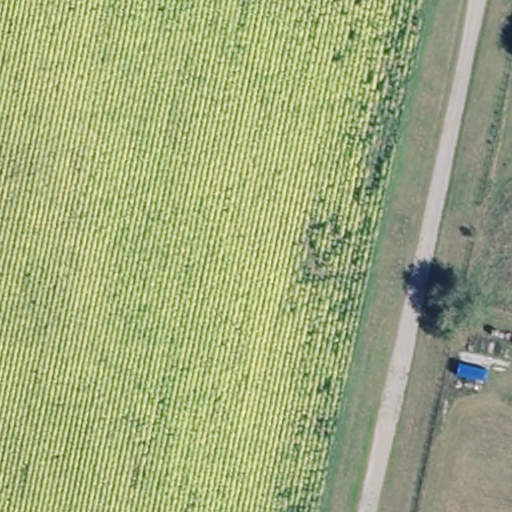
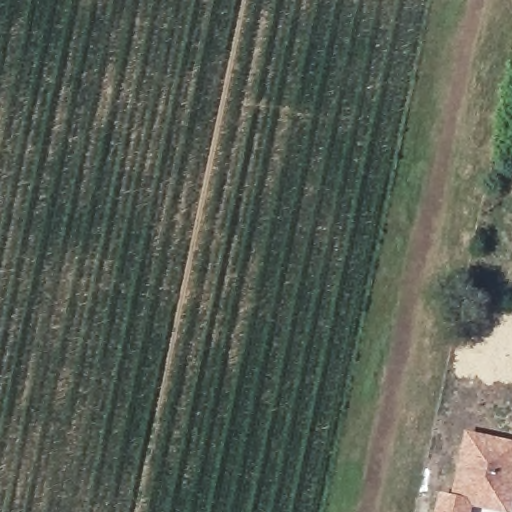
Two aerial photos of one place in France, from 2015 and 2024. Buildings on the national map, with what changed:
new [(463,433),(512,443),(512,512),(490,512),(472,508),(471,512),(434,512),(437,495),(450,495),(463,433)]

